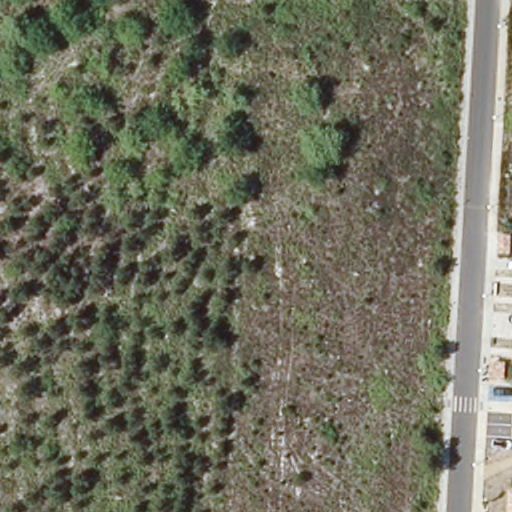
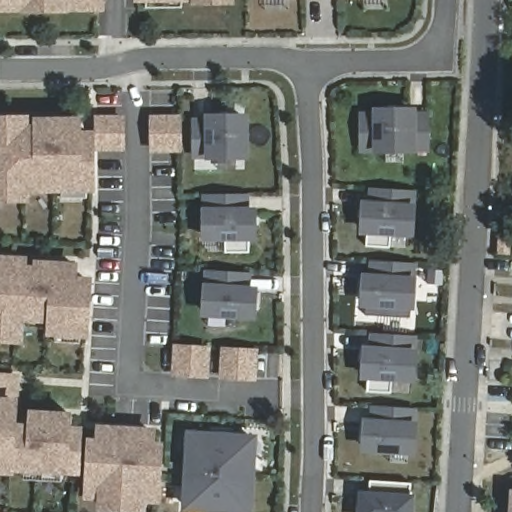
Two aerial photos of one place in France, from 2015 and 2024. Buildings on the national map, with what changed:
new [(16,5),(0,5),(0,0),(107,0),(107,4),(87,4),(69,4),(33,5),(16,5)]
new [(156,6),(155,0),(192,0),(192,5),(156,6)]
new [(418,107),(417,111),(431,111),(430,154),(417,153),(373,154),(373,152),(358,152),(359,112),(372,111),(372,108),(418,107)]
new [(204,161),(204,158),(192,159),(192,118),(203,118),(203,113),(249,113),(249,161),(204,161)]
new [(96,130),(97,118),(122,118),(122,148),(97,148),(95,192),(35,194),(35,192),(30,192),(30,201),(0,202),(0,115),(29,114),(29,123),(33,123),(33,117),(82,116),(82,131),(96,130)]
new [(182,152),(150,153),(150,114),(181,114),(182,152)]
new [(415,239),(391,237),(389,247),(366,246),(366,235),(359,235),(362,200),(368,200),(369,188),(416,190),(415,203),(417,203),(415,239)]
new [(258,207),(258,242),(250,242),(250,253),(224,253),(224,241),(202,241),(202,206),(202,195),(249,195),(249,207),(258,207)]
new [(28,264),(34,264),(34,260),(78,262),(78,275),(94,276),(89,339),(45,335),(45,322),(25,321),(23,345),(0,343),(0,254),(28,256),(28,264)]
new [(414,310),(360,308),(362,273),(368,273),(369,261),(417,263),(416,276),(414,310)]
new [(256,321),(201,317),(203,298),(201,298),(203,269),(253,272),(251,286),(259,286),(256,321)]
new [(415,383),(393,382),(392,393),(367,392),(368,381),(360,380),(363,345),(369,346),(370,333),(416,336),(417,348),(415,383)]
new [(170,376),(172,343),(211,346),(208,379),(170,376)]
new [(218,379),(220,347),(258,348),(256,381),(218,379)]
new [(73,411),(72,425),(82,426),(80,475),(13,472),(13,476),(0,475),(0,373),(19,374),(19,397),(17,421),(27,422),(28,409),(73,411)]
new [(370,418),(370,407),(418,409),(416,421),(418,421),(416,456),(359,454),(362,418),(370,418)]
new [(156,442),(164,442),(160,504),(146,503),(146,512),(113,512),(96,511),(97,500),(83,499),(86,437),(95,437),(95,423),(156,427),(156,442)]
new [(190,512),(181,511),(186,430),(258,434),(253,512),(190,512)]
new [(409,512),(362,512),(363,495),(369,496),(370,481),(411,483),(409,512)]
unchanged [(512,512),(511,512),(512,488),(512,512)]

